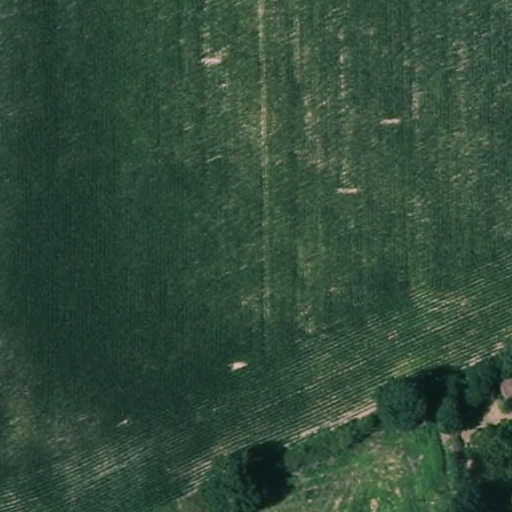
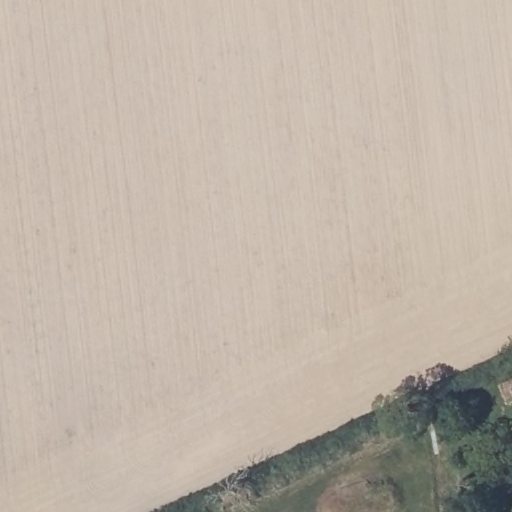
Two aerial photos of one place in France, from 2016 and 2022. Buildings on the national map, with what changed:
unchanged [(512,368),(512,389),(480,406),(471,390),(512,368)]

